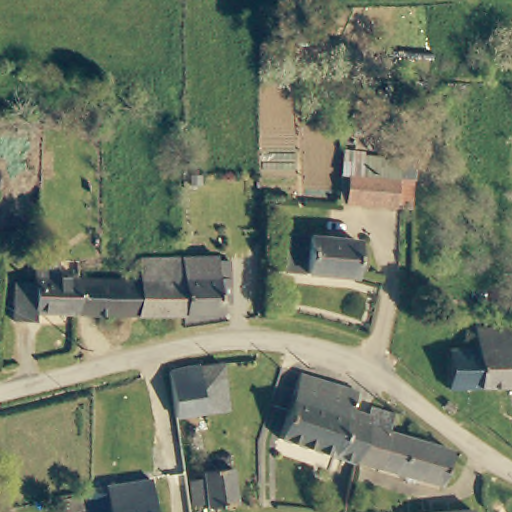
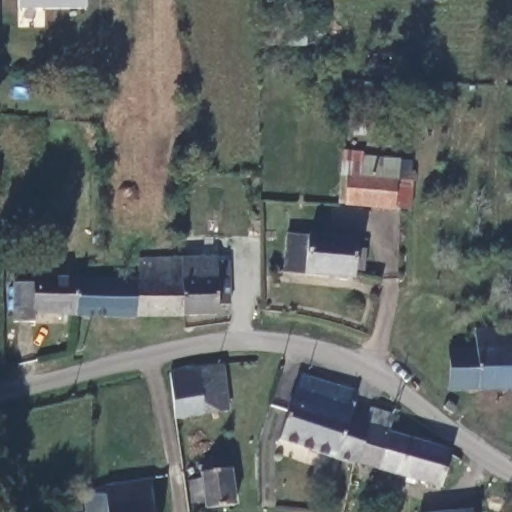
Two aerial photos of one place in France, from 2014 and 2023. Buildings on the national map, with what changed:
new [(84,0),(84,12),(17,15),(17,0),(84,0)]
unchanged [(396,201),(383,201),(384,204),(337,200),(339,170),(350,171),(351,152),(386,156),(386,175),(398,175),(396,201)]
unchanged [(363,285),(296,270),(304,235),(370,250),(363,285)]
unchanged [(138,256),(182,257),(182,316),(135,315),(137,277),(138,263),(138,256)]
unchanged [(218,275),(230,275),(229,305),(218,305),(217,317),(182,316),(182,257),(184,257),(219,258),(218,275)]
unchanged [(30,313),(30,321),(8,320),(9,277),(29,278),(30,258),(56,259),(56,276),(72,276),(71,314),(30,313)]
unchanged [(71,314),(72,276),(137,277),(135,315),(71,314)]
unchanged [(476,322),(512,322),(512,382),(476,383),(476,343),(476,322)]
unchanged [(450,383),(449,344),(476,343),(476,383),(450,383)]
unchanged [(233,410),(209,413),(180,418),(173,372),(187,368),(203,366),(222,365),(223,380),(228,379),(233,410)]
unchanged [(351,459),(279,439),(299,376),(357,392),(348,420),(362,424),(351,459)]
unchanged [(447,485),(399,472),(377,466),(351,459),(362,424),(367,407),(394,415),(388,433),(408,439),(447,450),(465,462),(453,484),(447,485)]
unchanged [(187,480),(200,480),(200,477),(205,471),(207,468),(232,466),(235,505),(203,506),(202,505),(188,505),(187,480)]
unchanged [(107,484),(152,475),(154,512),(109,512),(107,484)]
unchanged [(107,484),(109,512),(86,512),(85,486),(90,485),(107,484)]
unchanged [(454,511),(452,496),(468,491),(470,512),(450,512),(454,511)]
unchanged [(63,508),(63,495),(80,495),(81,507),(63,508)]

